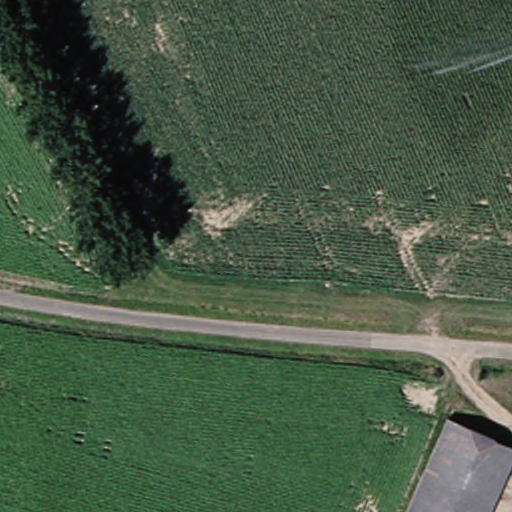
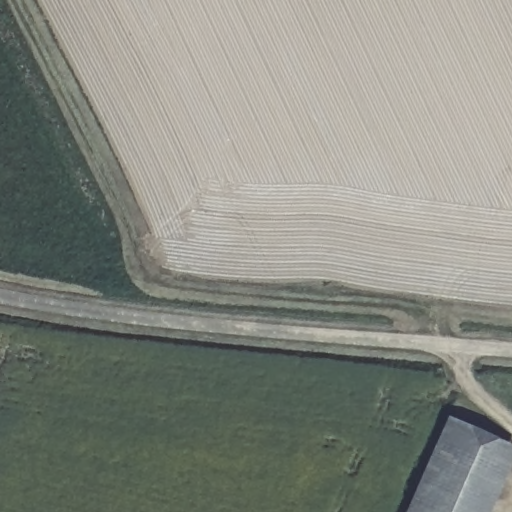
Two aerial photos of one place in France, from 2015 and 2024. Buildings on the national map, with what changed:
unchanged [(460,512),(396,512),(442,419),(492,442),(460,512)]
unchanged [(512,453),(485,512),(460,512),(492,442),(512,453)]

